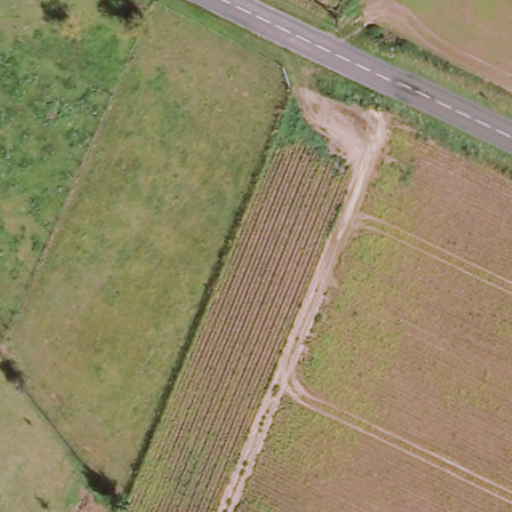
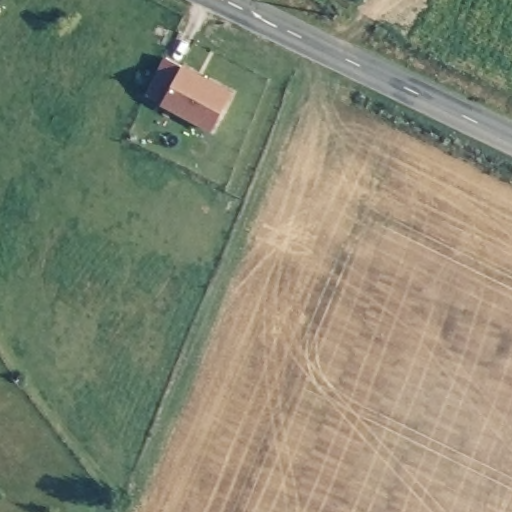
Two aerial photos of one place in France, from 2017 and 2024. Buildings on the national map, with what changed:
new [(167,57),(233,92),(212,132),(145,97),(167,57)]

